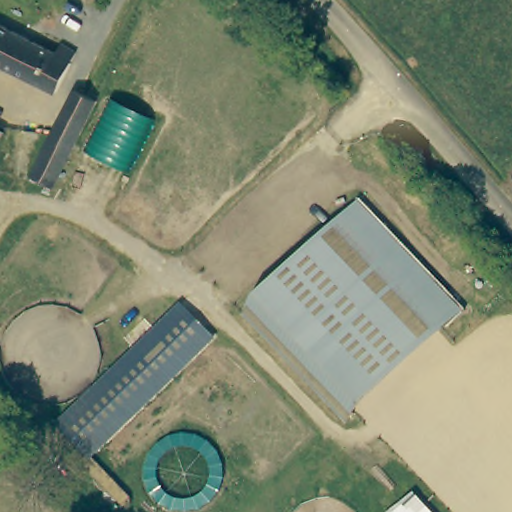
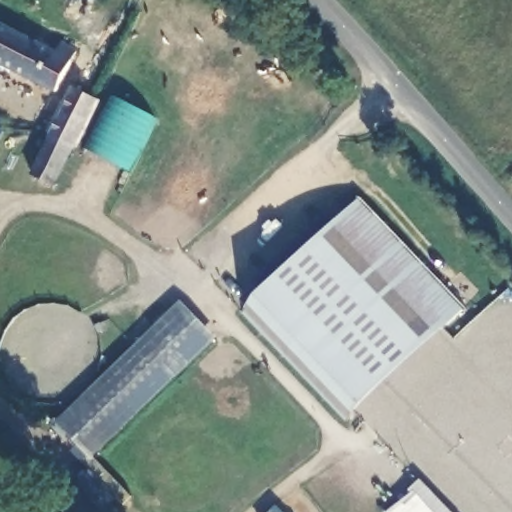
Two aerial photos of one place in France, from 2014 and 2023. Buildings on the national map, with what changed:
unchanged [(59,48),(76,57),(56,95),(0,65),(0,25),(56,55),(59,48)]
unchanged [(30,172),(49,133),(73,85),(96,97),(52,185),(30,172)]
unchanged [(85,150),(114,97),(154,118),(127,171),(85,150)]
unchanged [(0,136),(0,130),(3,131),(0,136)]
unchanged [(357,201),(460,313),(337,431),(234,322),(357,201)]
unchanged [(83,463),(57,435),(51,430),(65,417),(171,318),(202,350),(83,463)]

